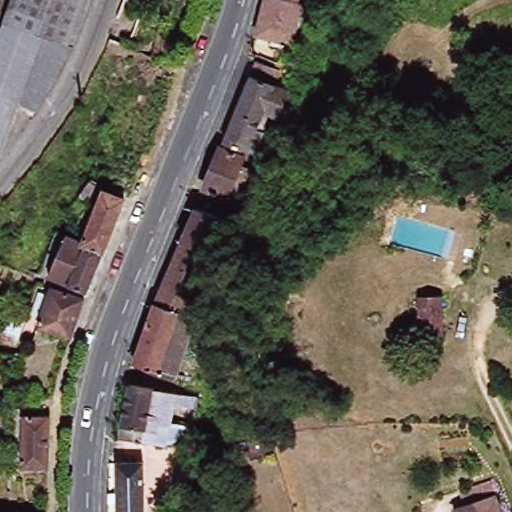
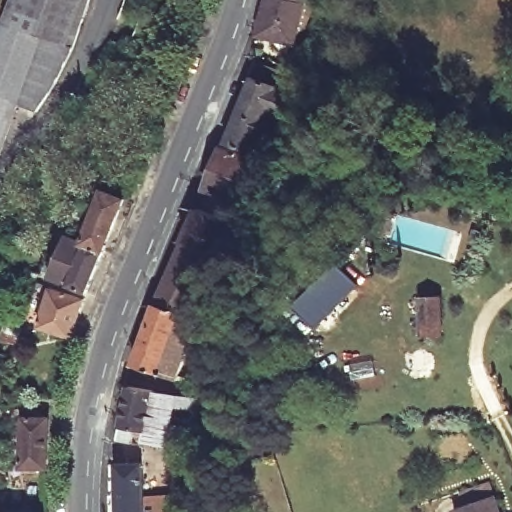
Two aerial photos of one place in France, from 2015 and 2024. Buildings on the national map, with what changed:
unchanged [(0,4),(0,0),(2,0),(0,4)]
unchanged [(81,44),(64,81),(48,106),(30,99),(15,138),(9,154),(0,150),(0,64),(23,0),(97,0),(81,44)]
unchanged [(295,47),(291,46),(261,38),(270,0),(295,6),(305,8),(295,47)]
unchanged [(295,6),(270,0),(296,0),(295,6)]
unchanged [(246,150),(223,140),(238,103),(255,59),(271,66),(270,70),(282,74),(281,75),(278,84),(294,92),(281,114),(264,107),(258,120),(264,122),(261,125),(259,131),(269,135),(256,154),(246,150)]
unchanged [(238,203),(226,199),(203,189),(220,147),(243,156),(254,160),(238,203)]
unchanged [(96,201),(87,195),(98,178),(107,184),(96,201)]
unchanged [(110,188),(131,197),(109,250),(82,238),(84,233),(90,235),(110,188)]
unchanged [(181,246),(196,213),(223,225),(209,259),(181,246)]
unchanged [(93,292),(54,276),(71,234),(75,235),(82,238),(109,250),(93,292)]
unchanged [(156,308),(181,246),(209,259),(186,317),(156,308)]
new [(339,266),(361,288),(319,331),(297,310),(339,266)]
unchanged [(75,336),(43,324),(58,287),(89,299),(75,336)]
unchanged [(443,337),(422,338),(419,300),(441,299),(443,337)]
unchanged [(133,368),(144,339),(156,308),(186,317),(197,320),(176,381),(133,368)]
unchanged [(218,355),(199,357),(196,333),(216,331),(215,322),(226,320),(231,353),(218,355)]
unchanged [(6,377),(10,365),(20,367),(17,380),(6,377)]
unchanged [(169,448),(123,443),(124,435),(134,389),(178,399),(201,403),(199,413),(176,408),(173,428),(196,431),(193,448),(193,451),(188,451),(169,448)]
unchanged [(23,470),(24,420),(49,420),(48,471),(23,470)]
unchanged [(154,483),(146,483),(146,512),(122,512),(122,462),(146,462),(147,474),(154,474),(154,483)]
unchanged [(471,507),(466,492),(494,482),(504,512),(460,512),(459,511),(471,507)]
unchanged [(154,512),(154,487),(173,486),(174,512),(154,512)]
unchanged [(37,508),(37,512),(13,512),(13,507),(37,508)]

